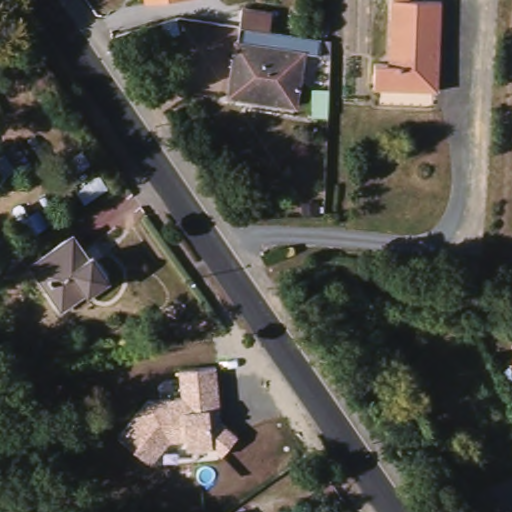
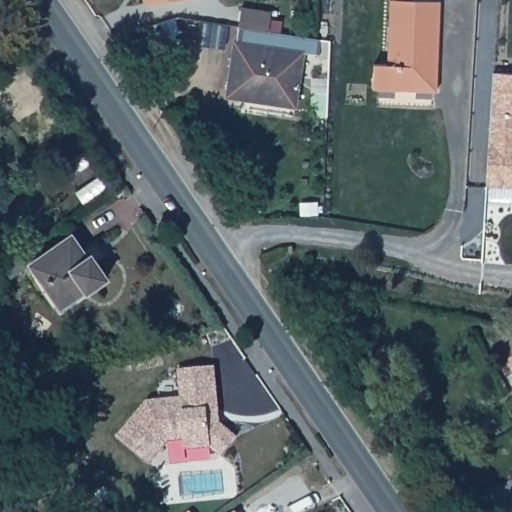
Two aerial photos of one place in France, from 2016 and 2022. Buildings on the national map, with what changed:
unchanged [(149,5),(148,0),(193,0),(149,5)]
unchanged [(375,87),(376,62),(390,62),(392,0),(442,0),(439,89),(414,88),(404,88),(375,87)]
unchanged [(298,104),(230,94),(238,40),(239,40),(241,25),(244,5),(274,10),(271,29),(323,37),(322,53),(306,50),(298,104)]
new [(494,72),(512,73),(512,185),(486,183),(494,72)]
unchanged [(33,265),(74,236),(90,258),(94,256),(110,279),(90,293),(87,289),(62,306),(33,265)]
unchanged [(20,256),(29,268),(13,278),(5,266),(20,256)]
unchanged [(215,364),(222,418),(240,436),(222,458),(211,449),(184,450),(183,442),(166,443),(149,465),(116,439),(148,399),(181,396),(179,369),(215,364)]
unchanged [(32,512),(25,512),(25,510),(32,512)]

